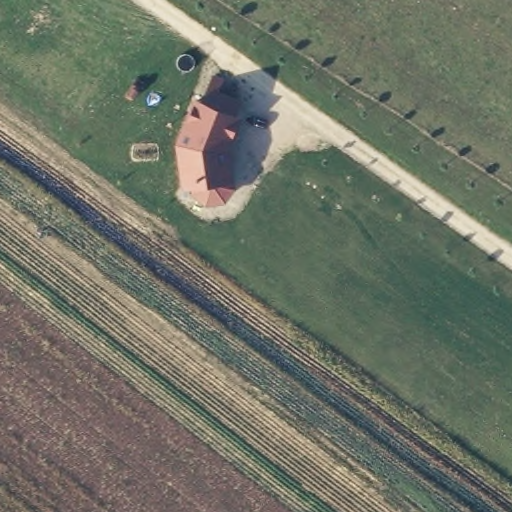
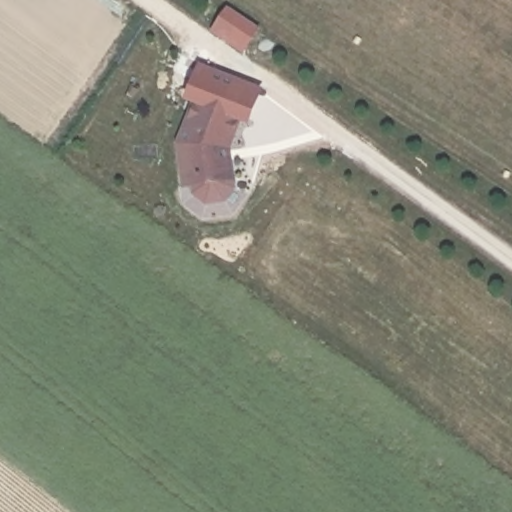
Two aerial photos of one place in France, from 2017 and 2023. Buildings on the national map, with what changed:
unchanged [(226,201),(208,206),(194,196),(192,188),(182,190),(175,142),(192,95),(200,97),(209,75),(222,79),(217,92),(240,100),(236,113),(242,116),(228,150),(235,184),(226,201)]

